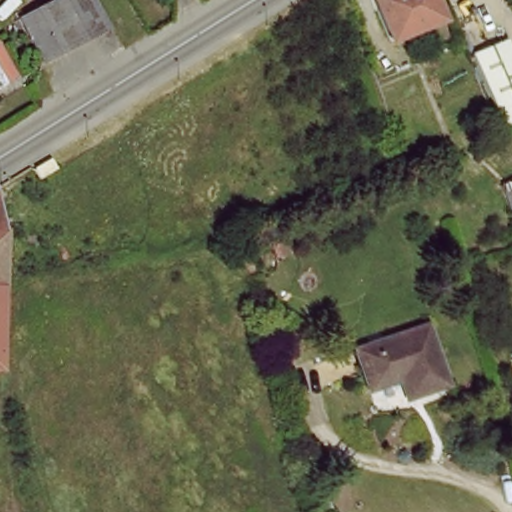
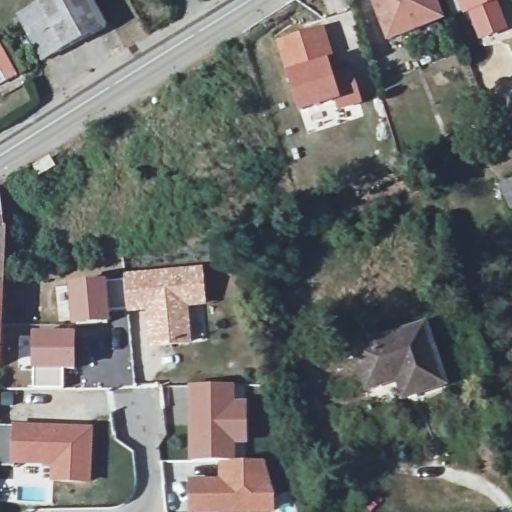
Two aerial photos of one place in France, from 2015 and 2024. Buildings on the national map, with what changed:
unchanged [(54,0),(92,0),(107,30),(43,63),(21,17),(54,0)]
unchanged [(437,22),(385,37),(374,0),(431,0),(437,22)]
new [(466,14),(460,16),(454,0),(503,0),(498,2),(508,29),(478,41),(466,14)]
new [(323,24),(335,56),(329,58),(284,71),(274,41),(323,24)]
demolished [(512,56),(512,125),(501,129),(470,54),(505,39),(512,56)]
new [(335,56),(335,57),(346,54),(363,102),(337,110),(334,102),(340,100),(329,58),(335,56)]
unchanged [(10,78),(0,83),(0,58),(10,78)]
new [(329,58),(340,100),(334,102),(298,113),(284,71),(329,58)]
unchanged [(0,306),(0,181),(3,179),(1,274),(0,306)]
new [(204,269),(205,305),(187,306),(190,347),(148,349),(145,312),(126,314),(121,273),(204,269)]
unchanged [(424,323),(445,376),(420,385),(412,367),(384,375),(371,340),(424,323)]
new [(75,332),(76,371),(65,372),(64,390),(31,390),(29,333),(75,332)]
new [(231,387),(231,401),(246,402),(245,444),(232,444),(231,462),(221,462),(187,462),(186,385),(231,387)]
new [(88,433),(85,482),(50,481),(51,464),(10,461),(10,467),(0,467),(0,427),(88,433)]
new [(55,484),(55,465),(16,463),(15,468),(0,468),(0,428),(91,433),(89,482),(55,484)]
new [(262,464),(272,495),(272,512),(189,512),(189,482),(221,482),(221,462),(231,462),(262,464)]
new [(262,464),(272,495),(272,512),(192,512),(192,483),(221,482),(221,462),(231,462),(262,464)]

